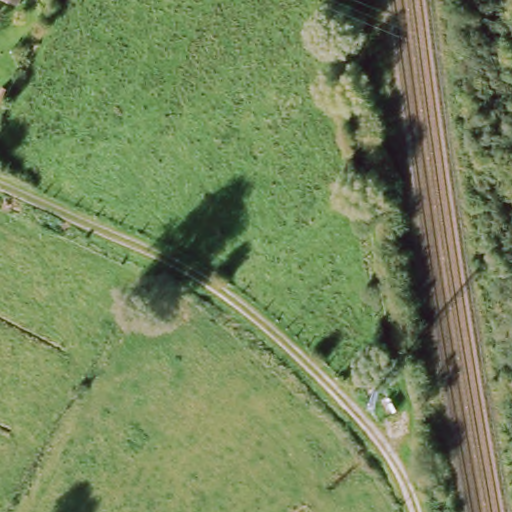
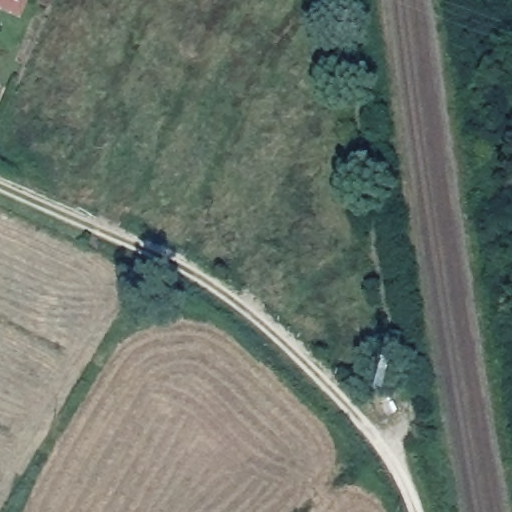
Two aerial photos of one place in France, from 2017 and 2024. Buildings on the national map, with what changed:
unchanged [(20,6),(7,0),(23,0),(20,6)]

